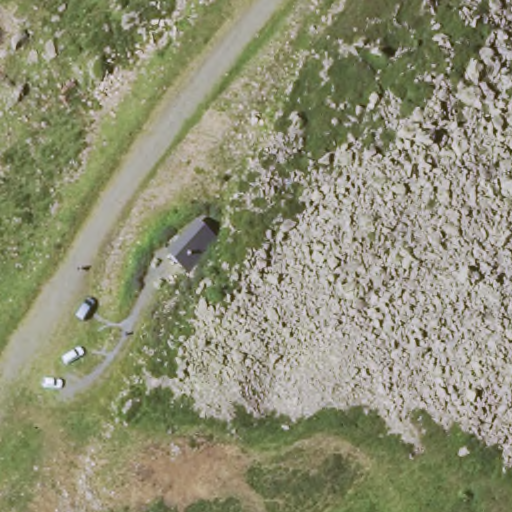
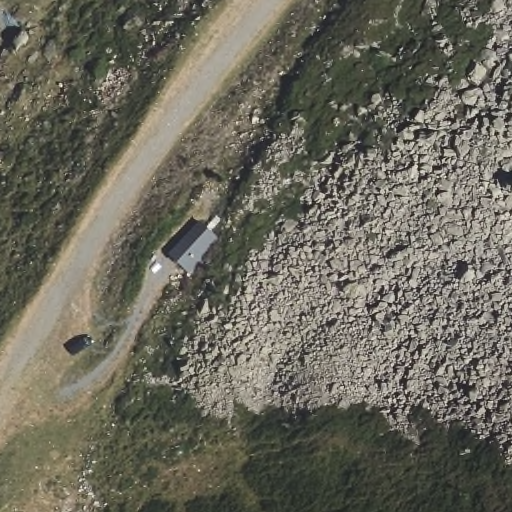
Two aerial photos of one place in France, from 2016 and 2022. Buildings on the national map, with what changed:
unchanged [(199,221),(218,238),(192,271),(171,253),(199,221)]

